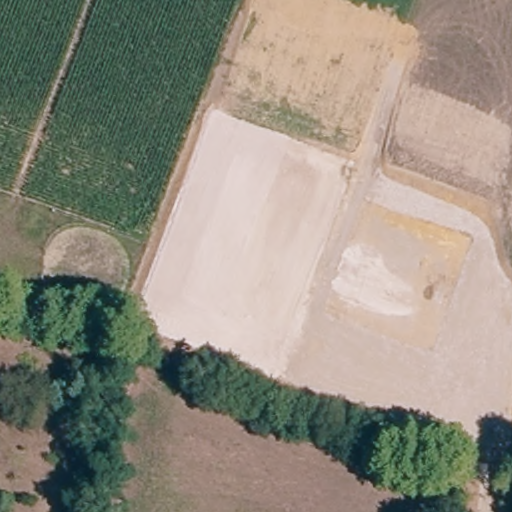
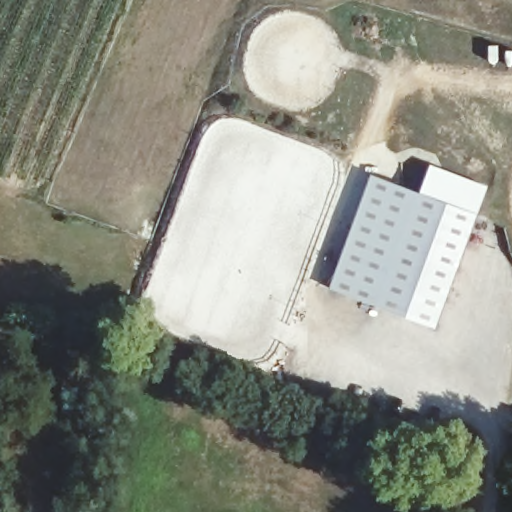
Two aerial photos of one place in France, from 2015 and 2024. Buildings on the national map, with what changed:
new [(367,170),(478,207),(439,321),(328,285),(367,170)]

